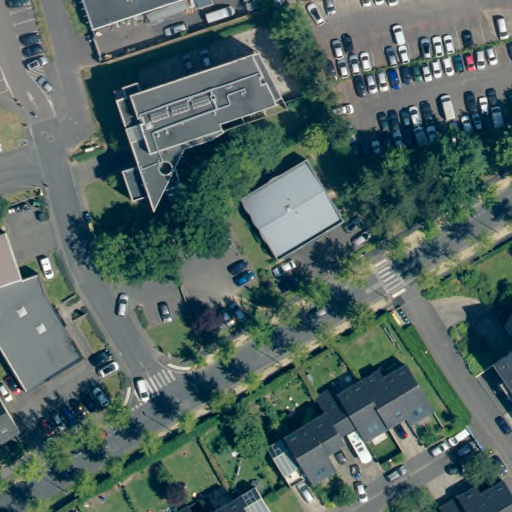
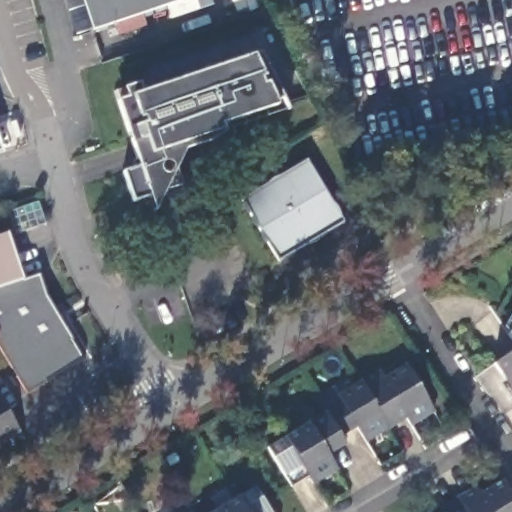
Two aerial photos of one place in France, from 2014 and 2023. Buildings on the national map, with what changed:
unchanged [(83,0),(187,0),(94,31),(83,0)]
unchanged [(140,197),(124,203),(113,172),(129,167),(103,93),(126,85),(130,94),(247,53),(278,110),(276,111),(271,100),(264,103),(266,107),(211,125),(214,133),(202,141),(175,150),(168,167),(167,165),(164,166),(171,186),(169,187),(157,191),(140,197)]
unchanged [(0,147),(0,135),(4,145),(0,147)]
unchanged [(85,154),(85,151),(92,149),(94,152),(85,154)]
unchanged [(241,199),(307,159),(346,223),(279,262),(241,199)]
unchanged [(0,236),(7,233),(25,277),(40,273),(50,301),(73,339),(72,341),(81,358),(45,380),(46,381),(28,391),(0,345),(0,236)]
unchanged [(505,323),(512,311),(512,333),(505,323)]
unchanged [(490,353),(512,336),(512,384),(490,353)]
unchanged [(405,414),(387,424),(365,437),(360,428),(355,422),(338,432),(342,440),(326,450),(330,458),(335,466),(311,479),(307,473),(290,483),(266,443),(324,409),(315,393),(333,383),(338,390),(377,367),(382,375),(405,361),(432,406),(408,420),(405,414)]
unchanged [(20,430),(0,443),(0,394),(29,441),(27,442),(20,430)]
unchanged [(458,499),(463,496),(480,486),(484,494),(505,482),(506,481),(507,481),(510,486),(512,489),(512,512),(446,512),(444,507),(458,499)]
unchanged [(271,512),(213,512),(255,487),(271,512)]
unchanged [(191,512),(178,512),(187,506),(191,512)]

